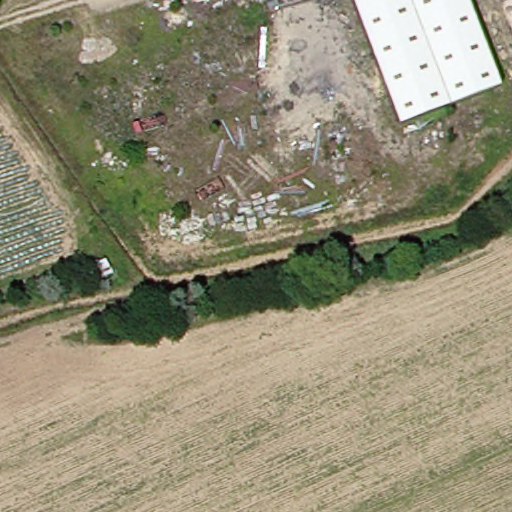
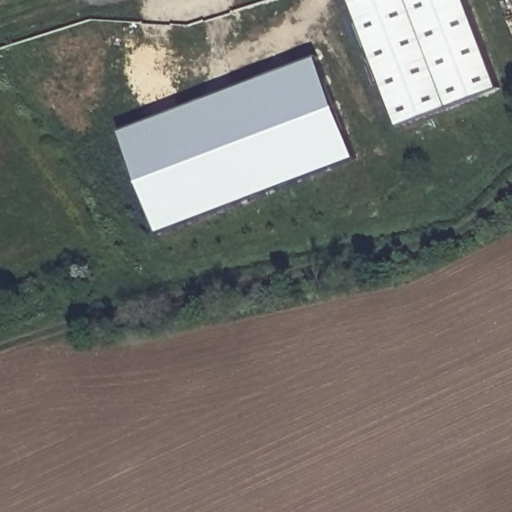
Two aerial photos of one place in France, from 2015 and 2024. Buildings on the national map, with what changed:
unchanged [(397,127),(349,0),(466,0),(499,89),(397,127)]
new [(356,157),(159,232),(121,131),(319,57),(338,107),(356,157)]

